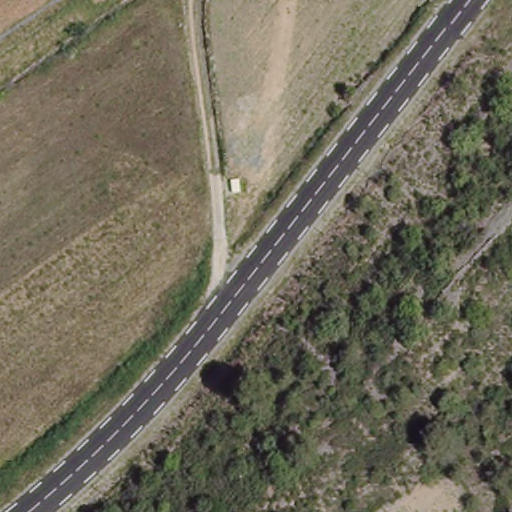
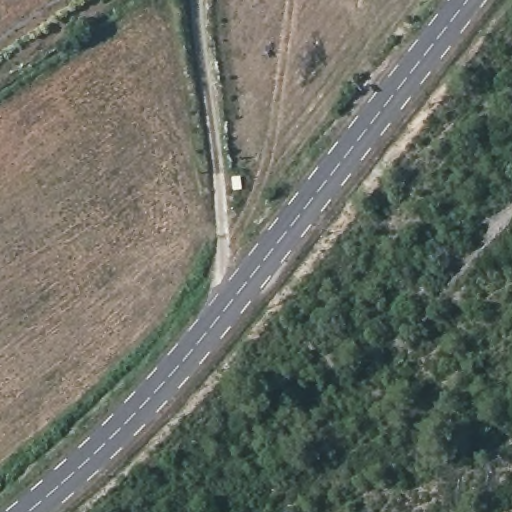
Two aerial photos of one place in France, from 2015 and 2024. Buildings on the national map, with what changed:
[]

